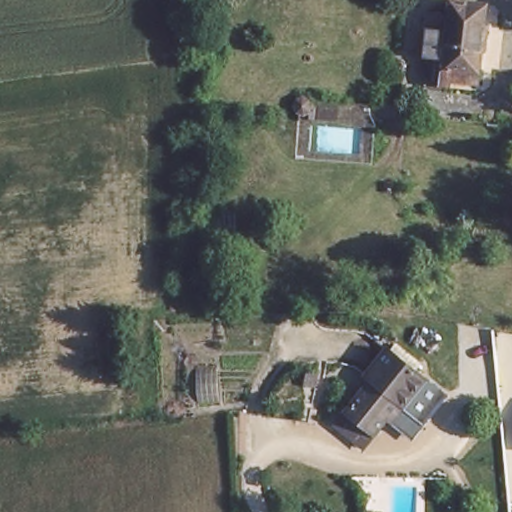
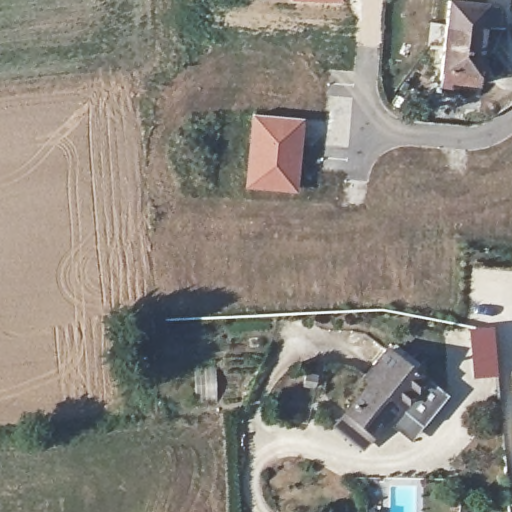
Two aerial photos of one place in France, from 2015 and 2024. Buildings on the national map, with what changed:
unchanged [(480,75),(449,72),(454,22),(455,10),(486,12),(481,75),(480,75)]
unchanged [(449,72),(480,75),(481,75),(479,94),(447,91),(447,100),(427,70),(432,21),(454,22),(449,72)]
demolished [(297,95),(297,102),(291,105),(286,104),(284,91),(292,86),(299,95),(297,95)]
new [(249,112),(304,117),(298,193),(243,189),(249,112)]
new [(493,327),(498,376),(472,378),(467,327),(493,327)]
unchanged [(364,379),(358,373),(385,342),(422,373),(385,418),(378,412),(366,426),(341,405),(364,379)]
new [(364,511),(383,511),(382,512),(363,512),(364,511)]

